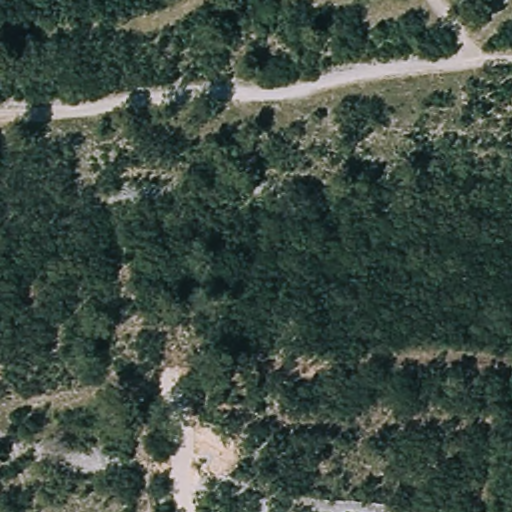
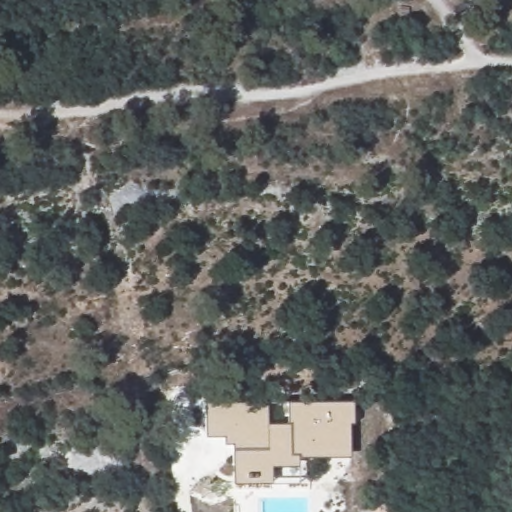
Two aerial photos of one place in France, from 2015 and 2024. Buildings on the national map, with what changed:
new [(234,443),(225,444),(225,435),(205,435),(206,400),(268,400),(267,423),(289,423),(289,400),(354,400),(354,421),(349,422),(350,455),(299,457),(299,465),(272,466),(272,481),(233,482),(234,443)]

